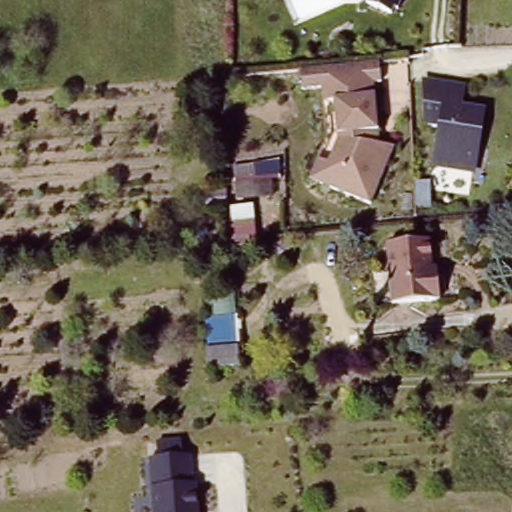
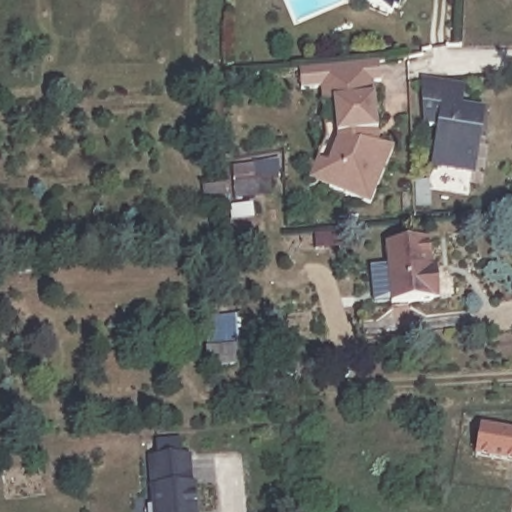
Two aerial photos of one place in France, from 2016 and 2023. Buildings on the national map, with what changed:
unchanged [(392,13),(367,7),(369,0),(397,0),(392,13)]
unchanged [(380,62),(382,82),(374,83),(380,143),(396,144),(372,202),(309,176),(319,155),(329,159),(335,140),(333,120),(325,121),(320,88),(298,89),(297,70),(380,62)]
unchanged [(456,110),(468,112),(474,113),(470,136),(464,171),(432,165),(440,121),(422,118),(420,82),(460,90),(456,110)]
unchanged [(221,250),(223,214),(198,212),(199,188),(230,187),(227,166),(267,158),(270,203),(251,202),(256,252),(221,250)]
unchanged [(430,217),(415,219),(413,192),(428,192),(430,217)]
unchanged [(432,268),(390,272),(387,246),(430,243),(432,268)]
unchanged [(390,272),(432,268),(433,271),(439,271),(439,278),(441,302),(392,306),(390,272)]
unchanged [(237,315),(240,369),(207,372),(204,349),(209,349),(206,318),(237,315)]
new [(477,429),(512,435),(512,463),(472,457),(477,429)]
unchanged [(157,438),(182,438),(183,454),(192,454),(196,512),(153,512),(150,457),(157,456),(157,438)]

